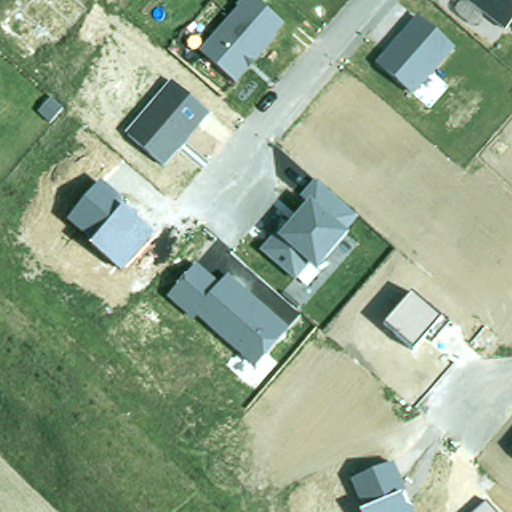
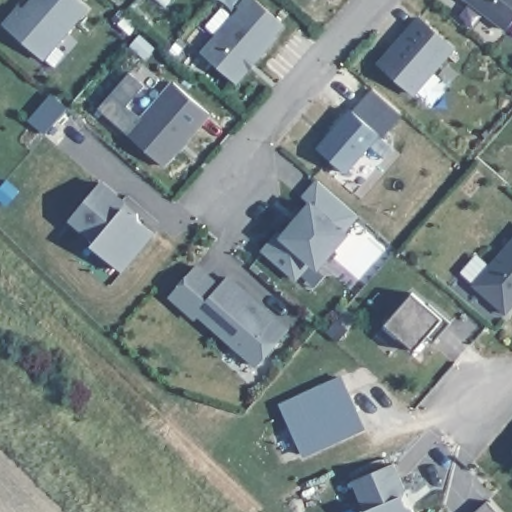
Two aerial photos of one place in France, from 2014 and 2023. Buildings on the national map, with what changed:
new [(45,59),(0,23),(15,5),(22,10),(31,0),(78,0),(88,8),(45,59)]
unchanged [(236,85),(200,53),(240,9),(237,5),(242,0),(254,0),(285,27),(236,85)]
unchanged [(465,0),(512,0),(512,24),(505,32),(465,0)]
unchanged [(455,50),(412,95),(375,61),(415,18),(455,50)]
new [(97,108),(128,71),(143,85),(127,105),(140,117),(126,132),(97,108)]
unchanged [(210,113),(160,170),(123,136),(175,80),(210,113)]
new [(380,135),(347,172),(317,148),(350,110),(380,135)]
unchanged [(123,204),(121,206),(155,232),(120,271),(65,222),(102,180),(123,204)]
unchanged [(358,218),(347,232),(350,235),(316,270),(320,275),(306,287),(296,279),(295,280),(260,251),(276,230),(280,234),(306,204),(300,197),(313,181),(358,218)]
new [(470,284),(512,236),(512,308),(505,315),(470,284)]
unchanged [(218,286),(227,276),(288,328),(251,368),(195,319),(190,323),(163,300),(196,263),(218,286)]
unchanged [(446,324),(430,342),(425,338),(412,351),(385,323),(412,293),(446,324)]
new [(365,430),(302,458),(278,403),(342,375),(365,430)]
unchanged [(512,451),(512,453),(511,452),(512,451)]
unchanged [(393,465),(405,493),(402,495),(405,504),(413,507),(415,512),(359,512),(358,510),(360,507),(350,483),(393,465)]
unchanged [(485,501),(494,512),(474,512),(485,501)]

